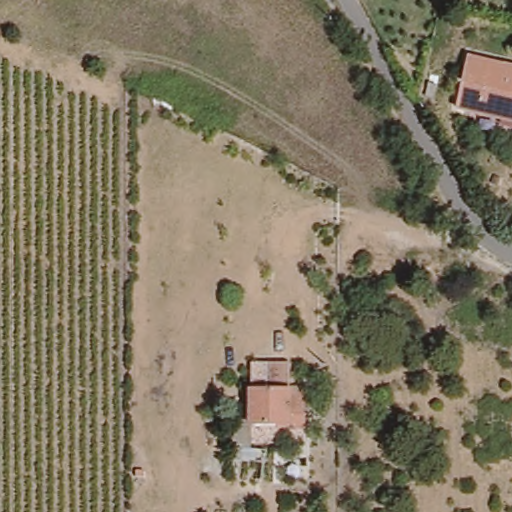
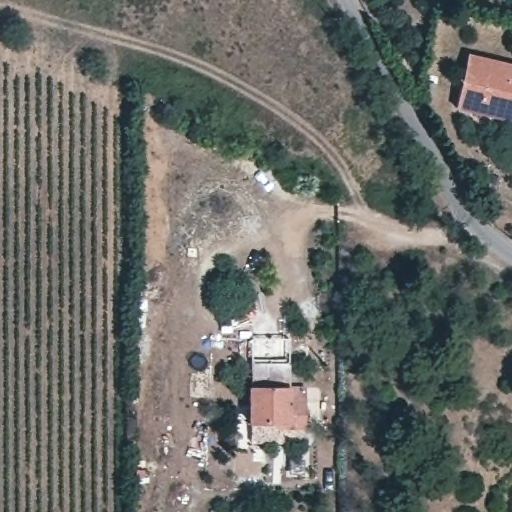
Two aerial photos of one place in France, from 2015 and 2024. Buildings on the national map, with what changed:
unchanged [(512,64),(512,119),(466,107),(479,55),(512,64)]
unchanged [(239,419),(253,420),(254,385),(299,386),(299,423),(259,422),(257,447),(269,448),(269,481),(237,477),(239,419)]

